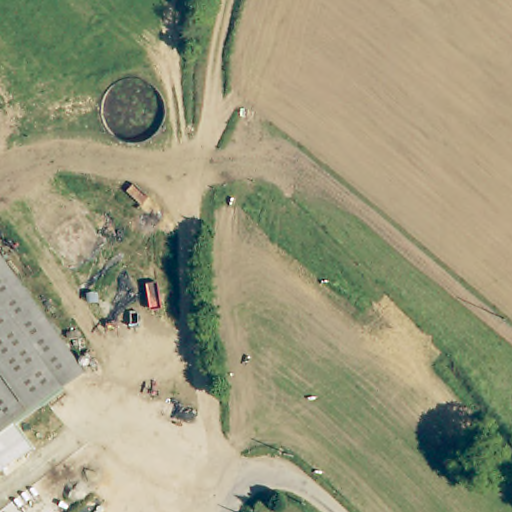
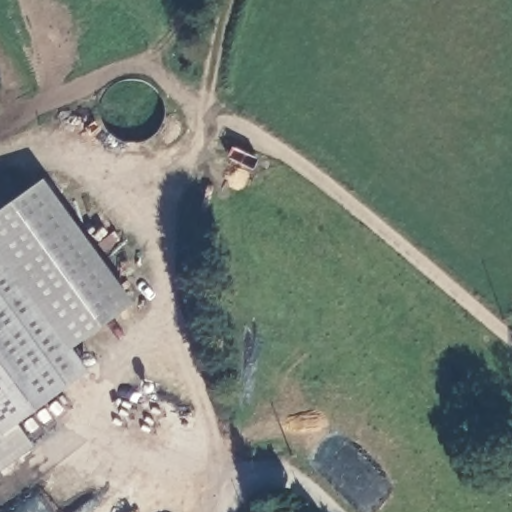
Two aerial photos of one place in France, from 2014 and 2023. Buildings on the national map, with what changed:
new [(42,183),(130,302),(68,348),(0,253),(0,213),(42,183)]
unchanged [(87,374),(6,434),(0,425),(0,253),(87,374)]
new [(6,434),(17,426),(32,448),(0,472),(0,425),(6,434)]

